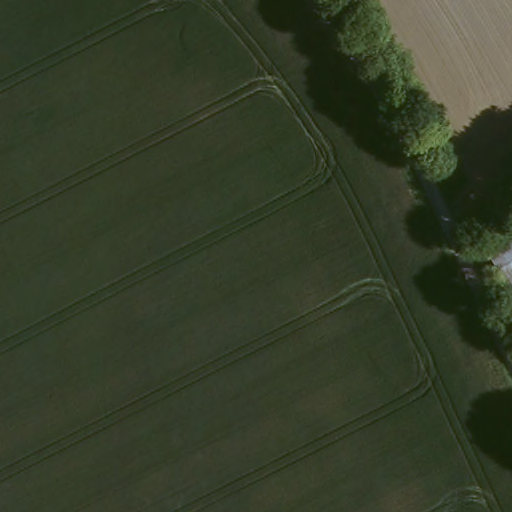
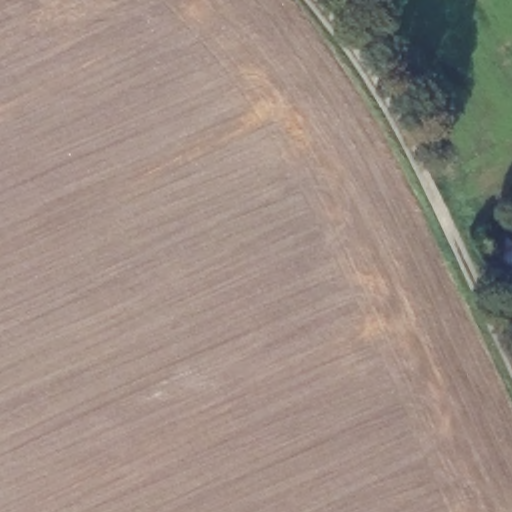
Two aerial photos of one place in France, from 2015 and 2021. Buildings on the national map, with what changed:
unchanged [(484,242),(512,224),(512,285),(508,287),(484,242)]

